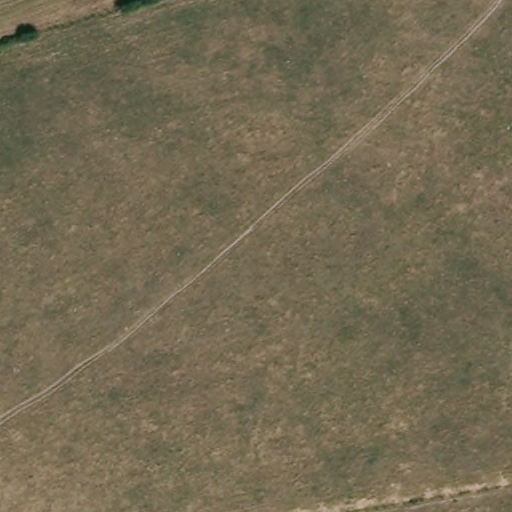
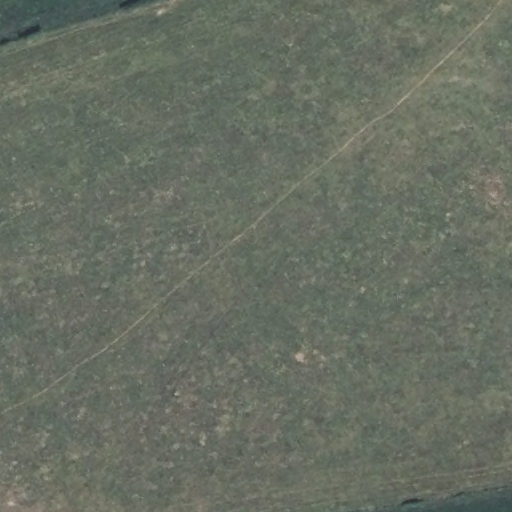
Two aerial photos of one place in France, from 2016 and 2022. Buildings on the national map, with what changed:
[]

